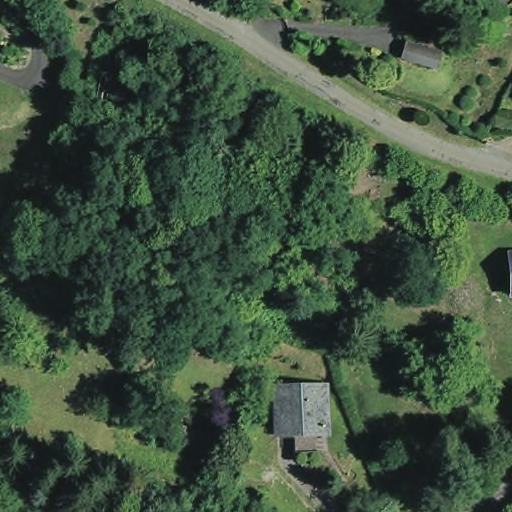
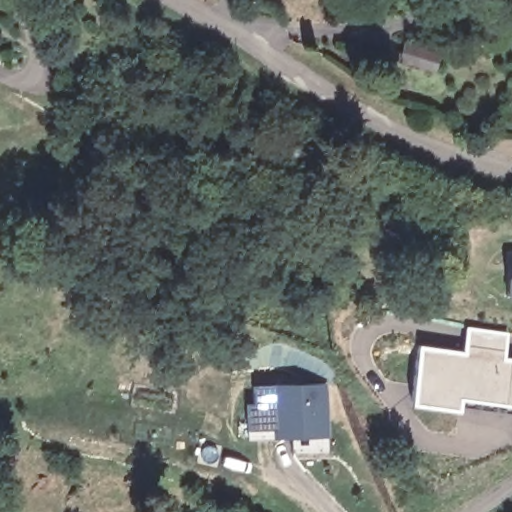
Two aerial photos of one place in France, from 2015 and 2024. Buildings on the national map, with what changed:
unchanged [(432,54),(427,68),(400,60),(405,47),(432,54)]
unchanged [(117,80),(112,104),(93,100),(97,76),(117,80)]
unchanged [(505,260),(512,260),(512,302),(505,302),(505,260)]
new [(465,355),(469,331),(505,334),(505,360),(512,361),(512,405),(457,397),(456,409),(410,404),(416,348),(465,355)]
unchanged [(326,441),(280,442),(278,388),(324,387),(326,441)]
new [(247,443),(245,406),(254,407),(254,392),(278,388),(280,442),(247,443)]

